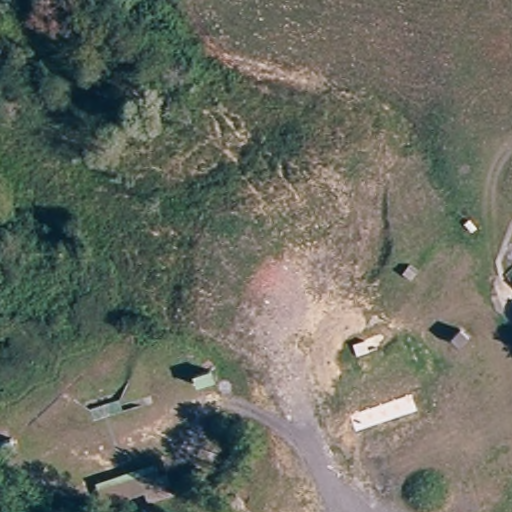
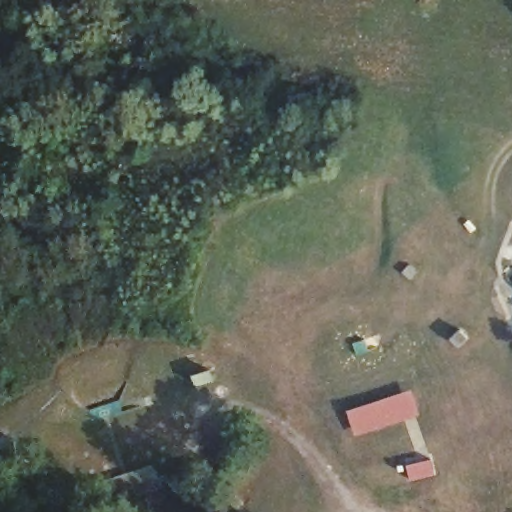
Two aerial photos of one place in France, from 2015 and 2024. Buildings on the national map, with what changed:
unchanged [(200,388),(196,378),(217,371),(221,382),(200,388)]
new [(412,390),(420,415),(355,436),(347,411),(412,390)]
unchanged [(4,457),(1,446),(17,441),(20,452),(4,457)]
unchanged [(150,472),(156,494),(105,505),(100,485),(150,472)]

